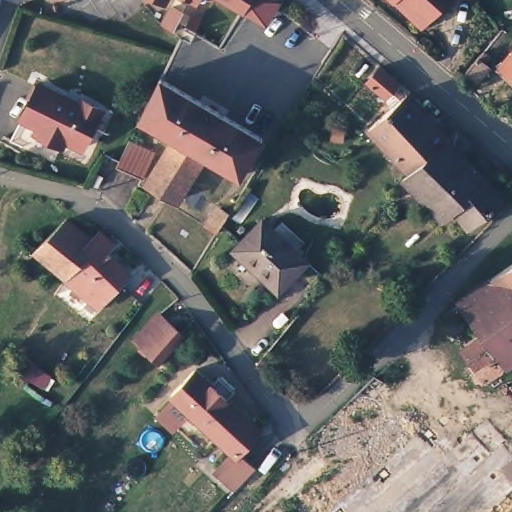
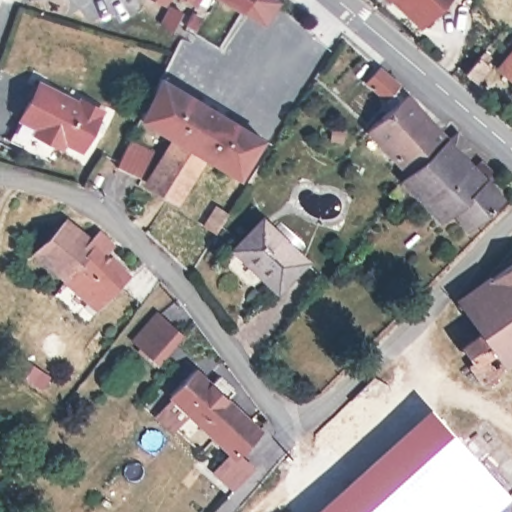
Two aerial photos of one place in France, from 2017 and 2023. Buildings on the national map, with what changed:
unchanged [(243,7),(240,6),(230,0),(248,0),(243,7)]
unchanged [(430,16),(411,0),(445,0),(430,16)]
unchanged [(172,9),(183,15),(173,32),(163,27),(172,9)]
unchanged [(190,15),(200,20),(195,30),(185,26),(190,15)]
unchanged [(484,46),(491,51),(485,59),(490,64),(478,79),(465,68),(484,46)]
unchanged [(500,64),(512,49),(512,76),(500,64)]
unchanged [(386,96),(385,95),(365,79),(378,63),(398,80),(395,84),(405,92),(407,90),(446,136),(408,170),(367,125),(388,105),(386,96)]
unchanged [(262,129),(239,169),(204,149),(173,127),(140,108),(160,66),(262,129)]
unchanged [(79,101),(81,96),(100,106),(82,144),(64,135),(61,142),(36,130),(39,122),(22,114),(38,80),(79,101)]
unchanged [(204,149),(179,191),(147,171),(173,127),(204,149)]
unchanged [(456,127),(469,143),(460,151),(472,161),(480,157),(493,171),(485,176),(502,196),(467,225),(452,206),(440,217),(402,175),(408,170),(446,136),(456,127)]
unchanged [(142,170),(116,157),(130,130),(155,142),(142,170)]
unchanged [(102,176),(97,188),(92,185),(96,175),(102,176)]
unchanged [(90,231),(98,224),(112,237),(105,244),(127,267),(91,305),(84,298),(89,292),(34,245),(65,210),(90,231)]
unchanged [(208,230),(219,210),(229,215),(217,234),(208,230)]
unchanged [(262,215),(305,257),(280,283),(263,267),(260,269),(234,245),(262,215)]
unchanged [(13,240),(20,233),(34,245),(27,252),(13,240)]
unchanged [(512,251),(512,348),(482,369),(457,337),(477,323),(456,292),(512,251)]
unchanged [(163,306),(185,327),(163,355),(140,333),(163,306)]
unchanged [(195,367),(210,381),(218,373),(233,387),(227,395),(260,428),(238,450),(254,465),(235,485),(217,468),(233,450),(171,392),(195,367)]
new [(512,498),(496,512),(313,512),(431,406),(512,498)]
demolished [(445,452),(470,428),(490,450),(500,440),(512,453),(512,489),(486,512),(322,512),(420,425),(445,452)]

